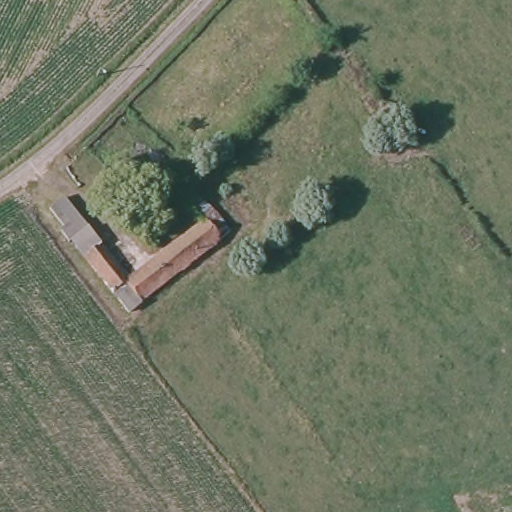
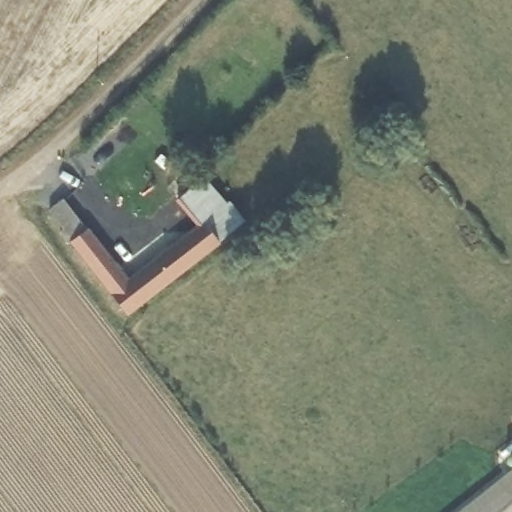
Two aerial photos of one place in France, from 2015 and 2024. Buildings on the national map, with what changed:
unchanged [(201,253),(127,317),(111,295),(106,294),(69,242),(73,237),(51,209),(65,198),(128,282),(180,241),(160,213),(186,194),(205,220),(216,216),(227,230),(201,253)]
new [(464,512),(512,477),(512,512),(464,512)]

